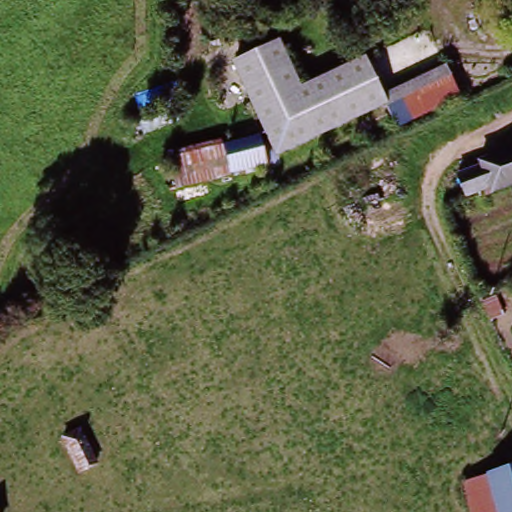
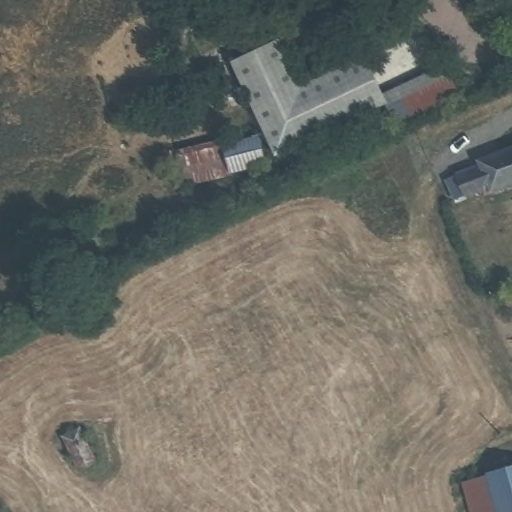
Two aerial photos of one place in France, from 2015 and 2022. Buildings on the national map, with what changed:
unchanged [(280,39),(300,86),(365,56),(382,92),(389,104),(274,160),(230,63),(280,39)]
unchanged [(382,92),(450,61),(470,94),(401,128),(382,92)]
unchanged [(260,136),(268,170),(172,192),(167,153),(260,136)]
unchanged [(457,178),(480,169),(478,163),(512,149),(512,187),(492,195),(489,189),(465,198),(457,178)]
unchanged [(77,472),(60,439),(76,431),(94,465),(77,472)]
unchanged [(494,512),(481,471),(512,461),(512,512),(494,512)]
unchanged [(481,471),(494,512),(467,512),(457,478),(481,471)]

